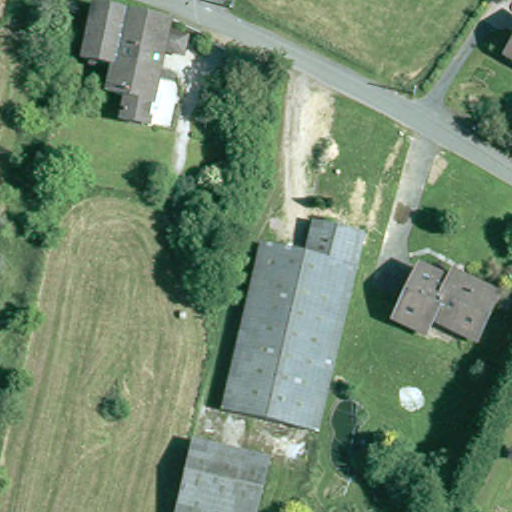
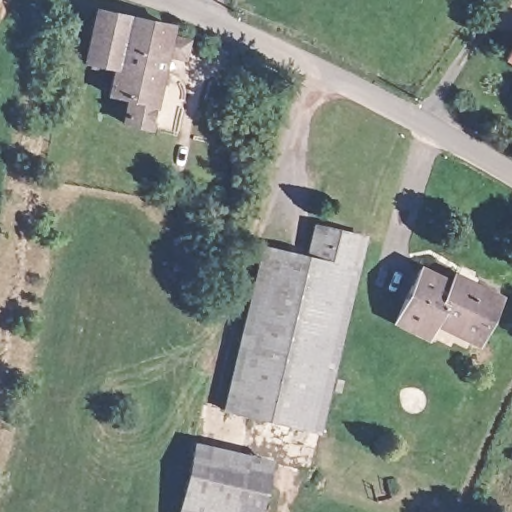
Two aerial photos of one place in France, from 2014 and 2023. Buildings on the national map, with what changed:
unchanged [(125,126),(131,102),(111,97),(115,78),(107,76),(109,70),(87,65),(98,11),(175,24),(171,38),(190,43),(186,63),(166,60),(150,131),(125,126)]
unchanged [(510,56),(512,54),(512,57),(510,56)]
unchanged [(233,406),(270,243),(312,252),(320,222),(371,236),(325,429),(233,406)]
unchanged [(476,345),(440,324),(429,341),(396,323),(423,272),(451,286),(456,277),(478,289),(500,302),(476,345)]
unchanged [(180,512),(196,439),(273,459),(261,512),(180,512)]

